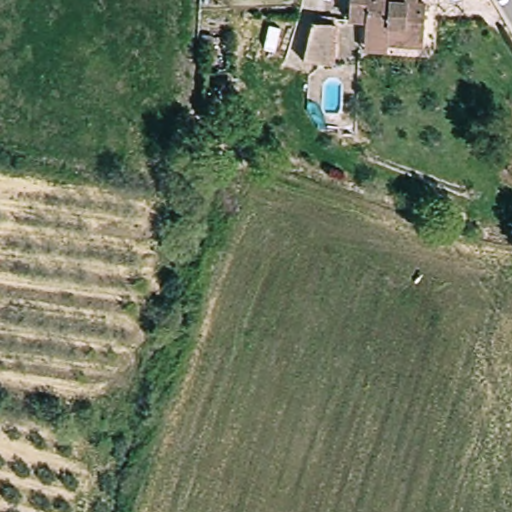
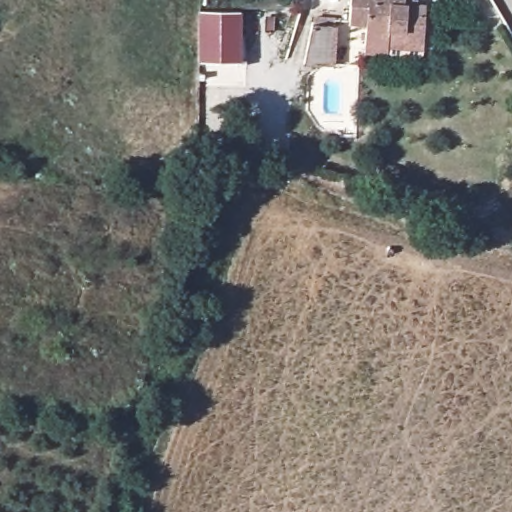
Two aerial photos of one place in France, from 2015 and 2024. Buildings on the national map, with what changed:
unchanged [(421,0),(420,7),(429,8),(420,50),(388,45),(387,50),(362,46),(366,20),(348,17),(351,0),(421,0)]
new [(197,61),(198,10),(240,12),(240,60),(197,61)]
unchanged [(343,26),(339,66),(308,65),(314,20),(343,26)]

